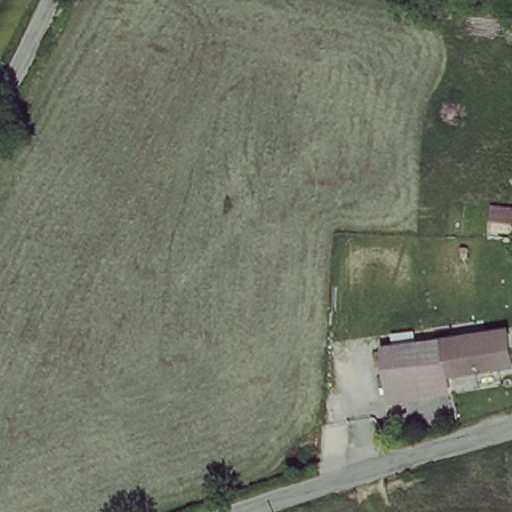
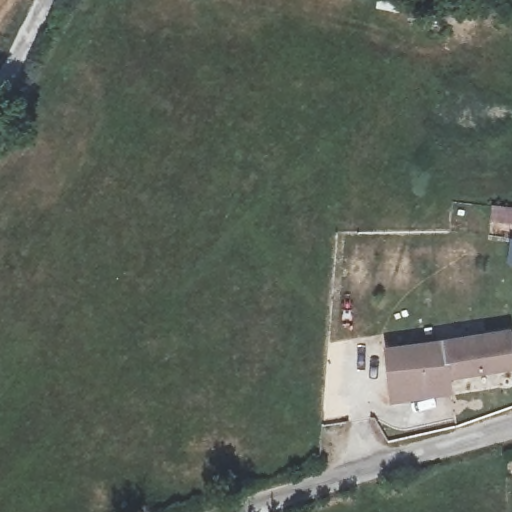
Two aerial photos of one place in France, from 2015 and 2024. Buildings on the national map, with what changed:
unchanged [(397,393),(392,366),(378,367),(375,352),(508,328),(512,344),(512,362),(457,372),(458,382),(459,391),(398,402),(397,393)]

